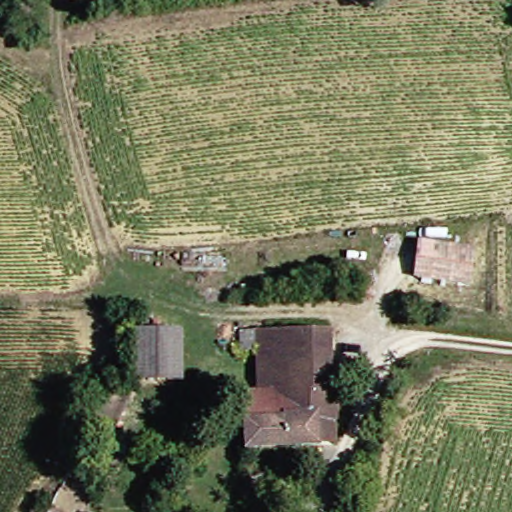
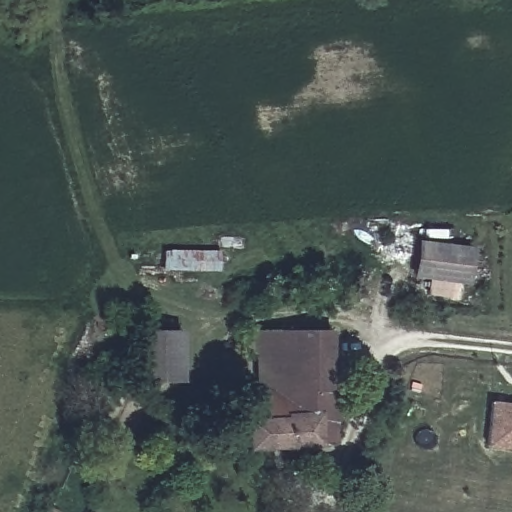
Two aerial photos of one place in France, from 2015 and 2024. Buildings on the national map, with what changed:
unchanged [(420,245),(470,252),(465,288),(414,281),(420,245)]
unchanged [(175,381),(131,381),(131,334),(176,335),(175,381)]
unchanged [(312,445),(237,449),(235,395),(251,393),(248,335),(316,336),(315,395),(326,396),(327,422),(327,445),(312,445)]
new [(488,404),(512,407),(512,450),(483,447),(488,404)]

